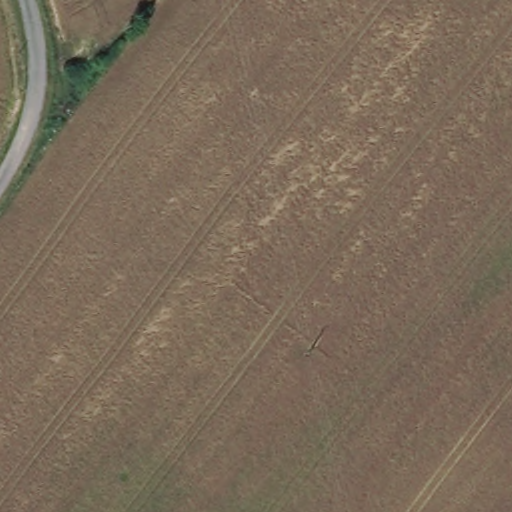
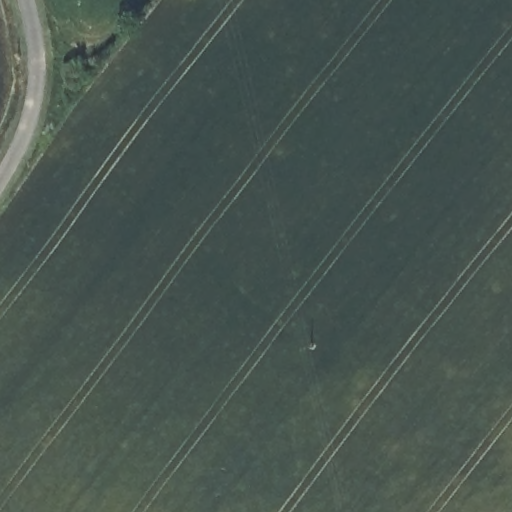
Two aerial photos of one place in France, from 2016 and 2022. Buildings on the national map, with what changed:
unchanged [(87,68),(83,72),(75,68),(80,61),(87,68)]

